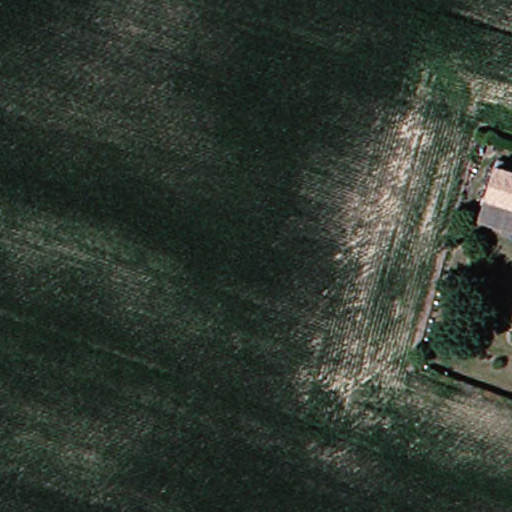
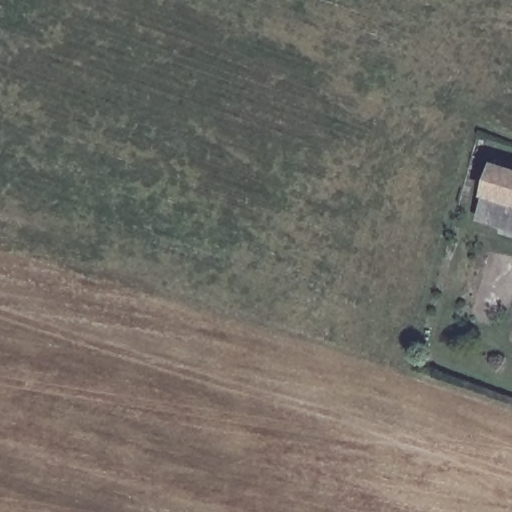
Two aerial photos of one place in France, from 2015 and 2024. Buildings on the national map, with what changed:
unchanged [(473,195),(481,163),(512,173),(512,207),(473,195)]
unchanged [(467,215),(473,195),(512,207),(512,231),(467,215)]
unchanged [(510,332),(512,326),(512,333),(510,332)]

